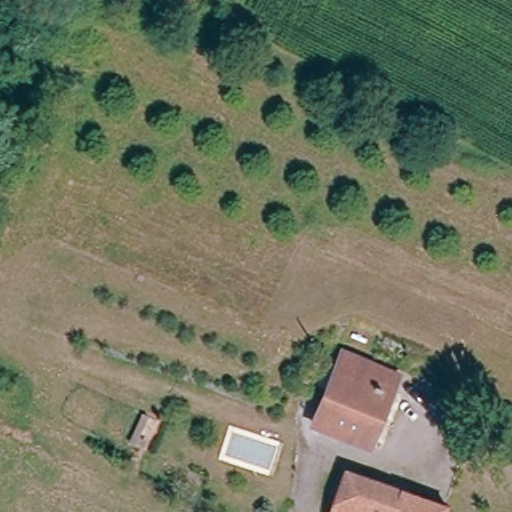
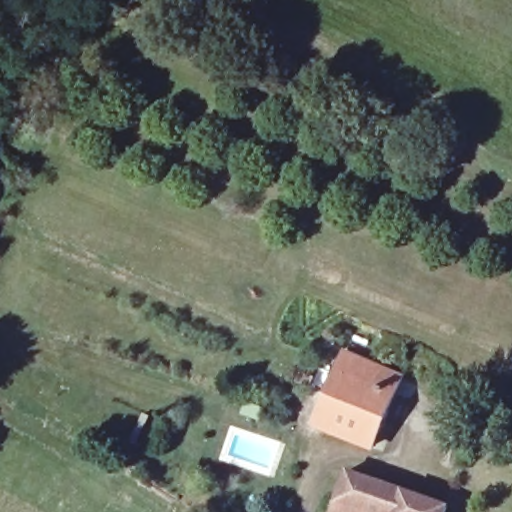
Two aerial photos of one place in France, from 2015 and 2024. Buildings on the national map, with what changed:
unchanged [(401,379),(370,446),(312,418),(342,352),(401,379)]
unchanged [(331,465),(365,476),(353,512),(316,512),(322,496),(331,465)]
unchanged [(462,511),(462,512),(353,512),(365,476),(423,497),(462,511)]

